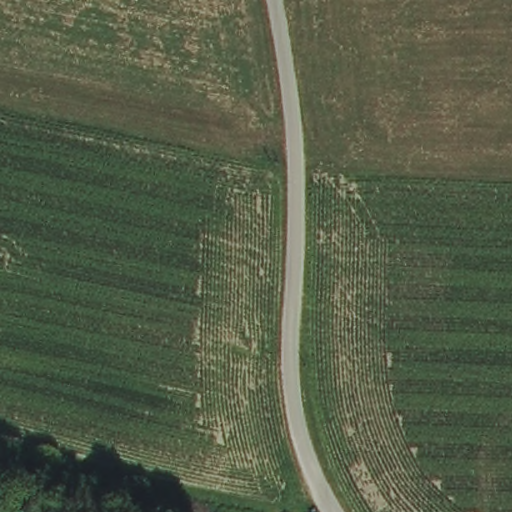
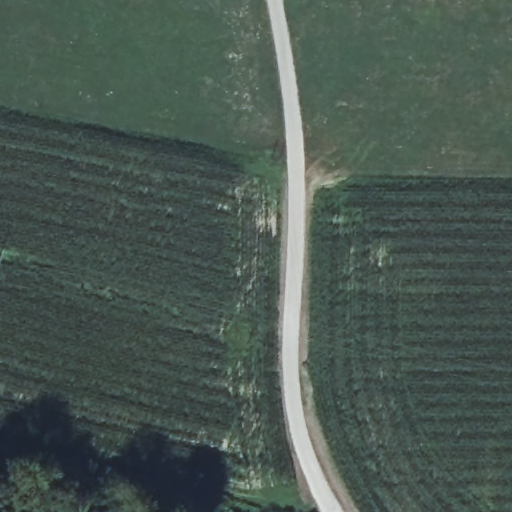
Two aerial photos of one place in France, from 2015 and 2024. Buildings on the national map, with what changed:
[]

